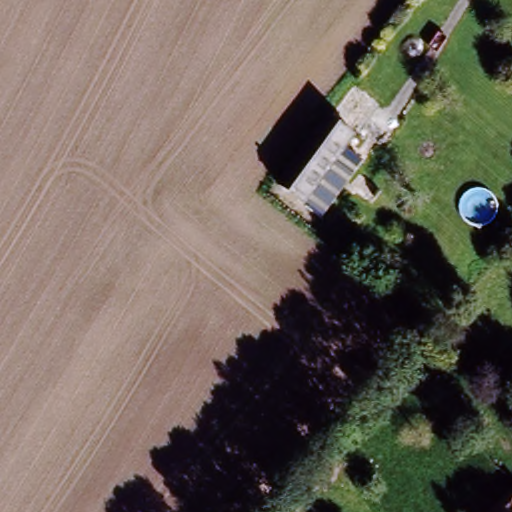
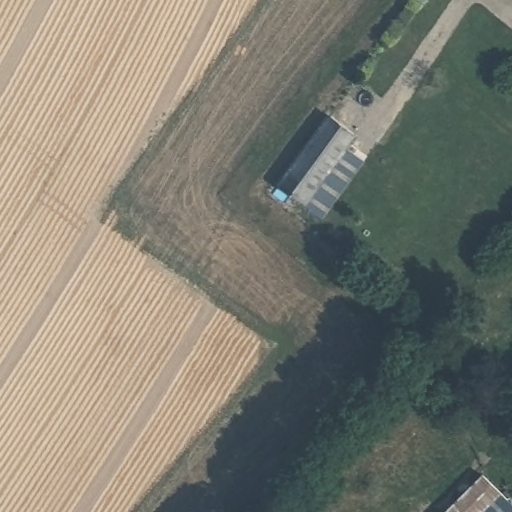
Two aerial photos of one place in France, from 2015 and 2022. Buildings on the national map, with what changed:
unchanged [(359,135),(307,206),(273,184),(327,112),(359,135)]
new [(484,477),(512,505),(512,512),(447,512),(484,477)]
demolished [(512,493),(512,512),(493,512),(512,493)]
new [(436,505),(443,512),(429,512),(436,505)]

